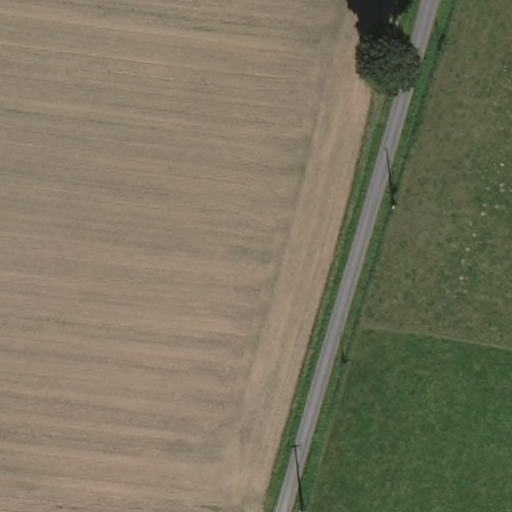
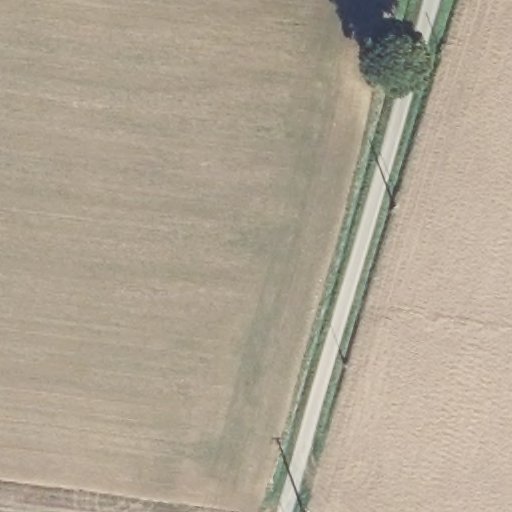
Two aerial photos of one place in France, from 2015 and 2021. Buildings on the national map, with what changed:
[]

